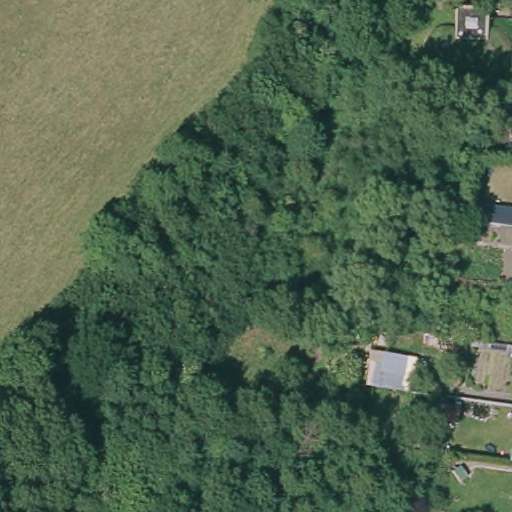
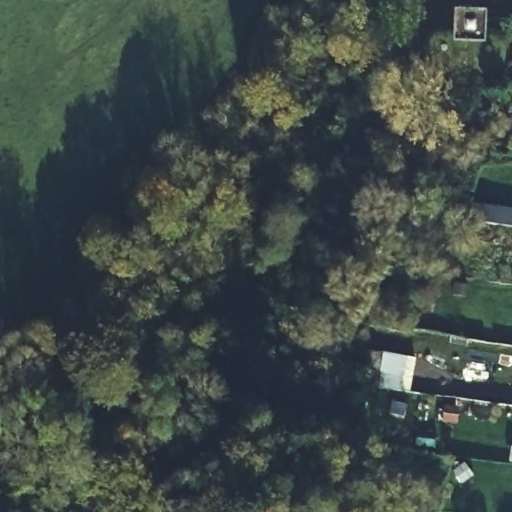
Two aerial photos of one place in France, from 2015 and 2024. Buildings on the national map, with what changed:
unchanged [(512,205),(512,222),(498,220),(501,204),(512,205)]

